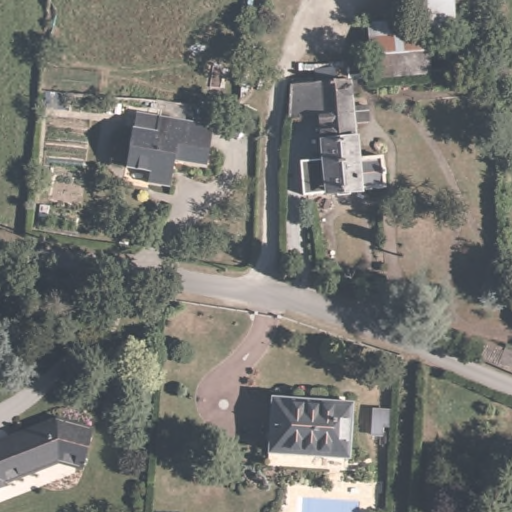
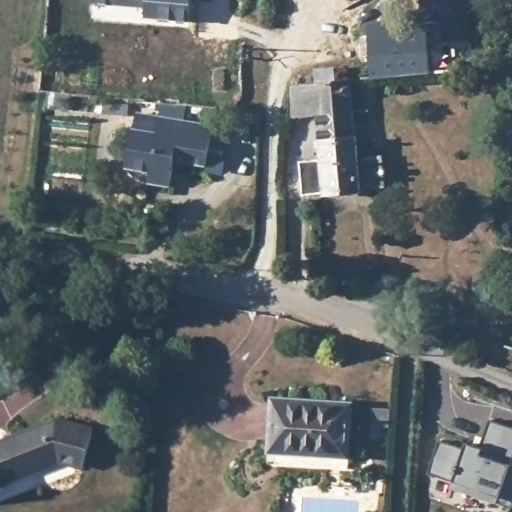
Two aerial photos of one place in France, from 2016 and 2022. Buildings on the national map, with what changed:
new [(193,0),(191,21),(145,17),(145,8),(91,4),(92,0),(193,0)]
unchanged [(454,54),(455,75),(362,81),(362,22),(417,20),(417,0),(466,0),(470,53),(454,54)]
unchanged [(319,78),(319,66),(343,64),(344,77),(352,76),(356,155),(387,154),(390,193),(309,198),(308,186),(328,182),(324,113),(288,112),(291,79),(319,78)]
unchanged [(200,165),(171,160),(165,184),(144,181),(144,171),(122,167),(131,116),(207,129),(200,165)]
unchanged [(295,397),(295,392),(349,395),(348,451),(322,451),(322,447),(268,445),(269,397),(295,397)]
unchanged [(56,450),(4,471),(3,480),(0,482),(0,442),(8,438),(7,435),(56,416),(92,425),(85,457),(56,450)]
new [(466,442),(481,447),(489,420),(512,428),(512,459),(510,464),(512,464),(512,507),(497,502),(450,488),(453,480),(428,473),(438,441),(465,446),(466,442)]

